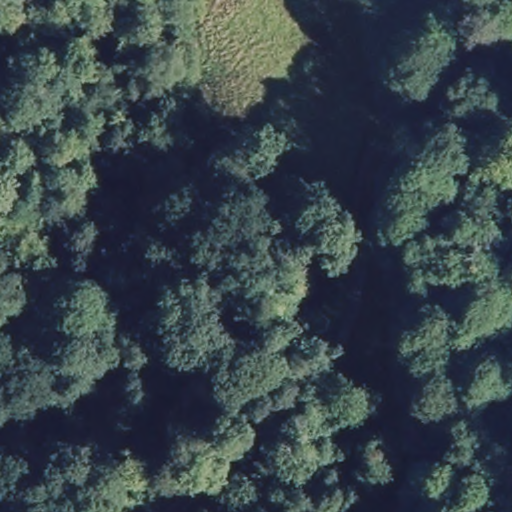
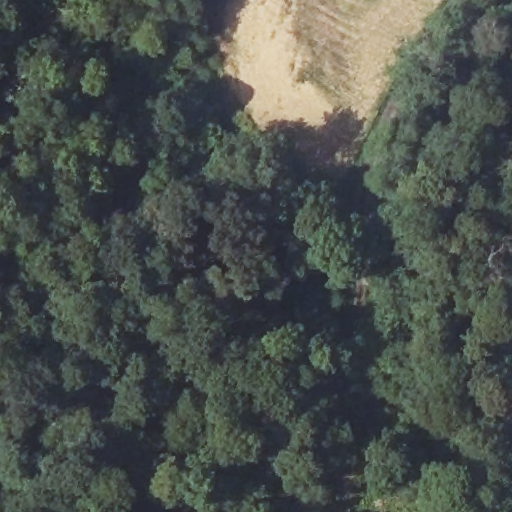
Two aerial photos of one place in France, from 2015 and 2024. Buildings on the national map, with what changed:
[]

